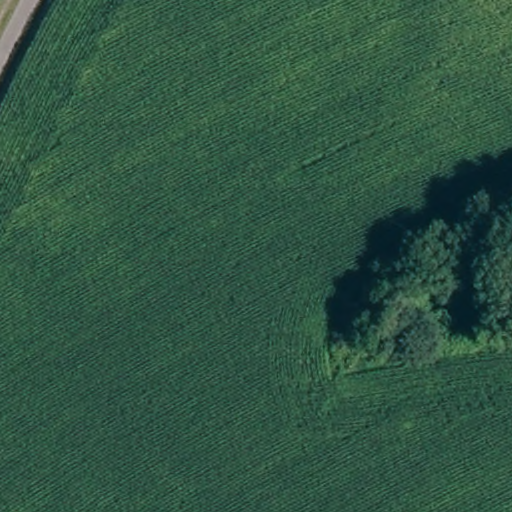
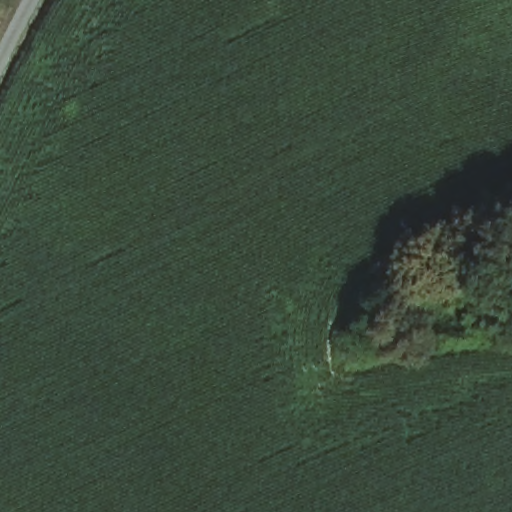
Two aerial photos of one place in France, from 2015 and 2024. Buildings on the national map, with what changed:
[]

